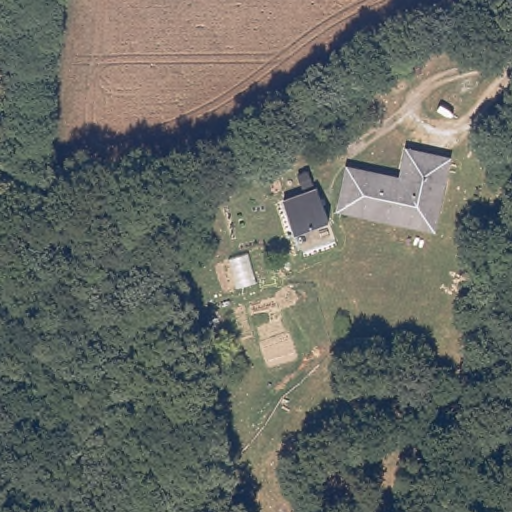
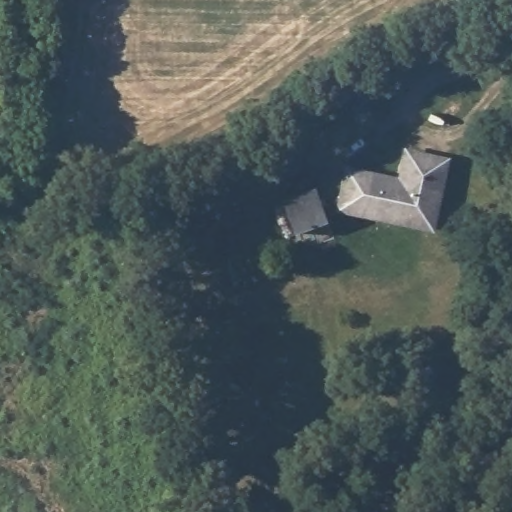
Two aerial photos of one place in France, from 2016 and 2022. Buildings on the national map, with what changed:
unchanged [(416,221),(341,204),(349,164),(401,176),(408,146),(447,154),(436,207),(432,224),(416,221)]
unchanged [(284,199),(315,186),(330,220),(298,232),(284,199)]
unchanged [(219,463),(227,461),(233,476),(225,478),(219,463)]
unchanged [(234,494),(251,487),(256,498),(239,506),(234,494)]

